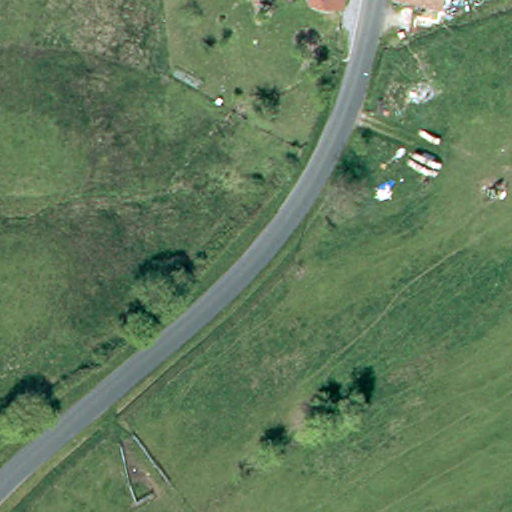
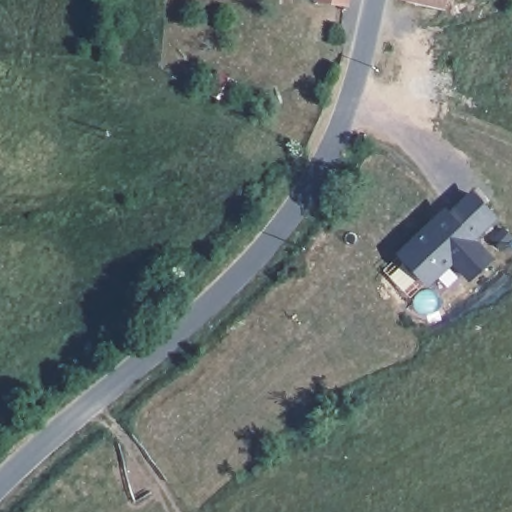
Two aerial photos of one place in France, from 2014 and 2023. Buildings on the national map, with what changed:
unchanged [(418,0),(445,0),(444,4),(418,0)]
new [(446,207),(450,211),(471,190),(496,217),(475,237),(494,258),(468,282),(452,265),(427,287),(395,252),(446,207)]

